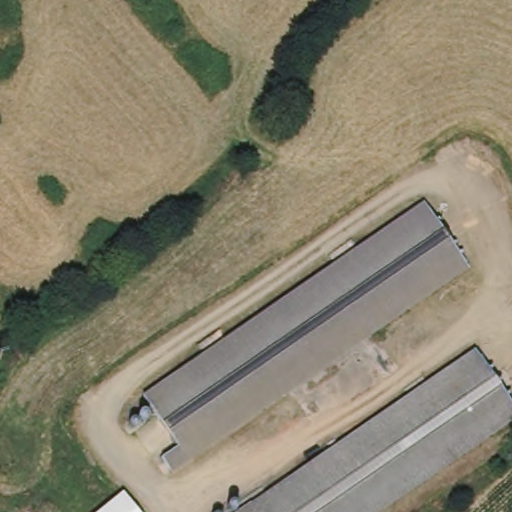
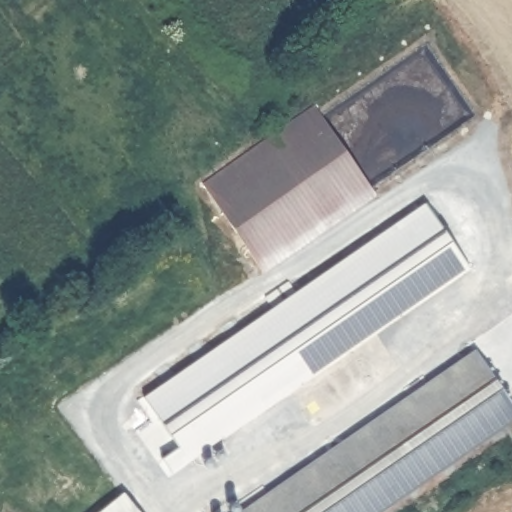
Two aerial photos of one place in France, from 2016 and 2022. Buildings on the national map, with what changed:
new [(205,185),(313,110),(375,195),(265,273),(205,185)]
unchanged [(469,270),(187,465),(178,452),(194,441),(162,393),(428,210),(469,270)]
unchanged [(512,422),(381,512),(243,512),(477,351),(512,405),(512,422)]
unchanged [(102,512),(128,491),(145,512),(102,512)]

